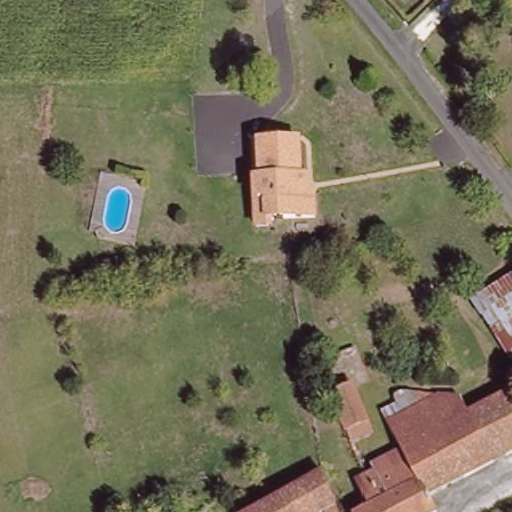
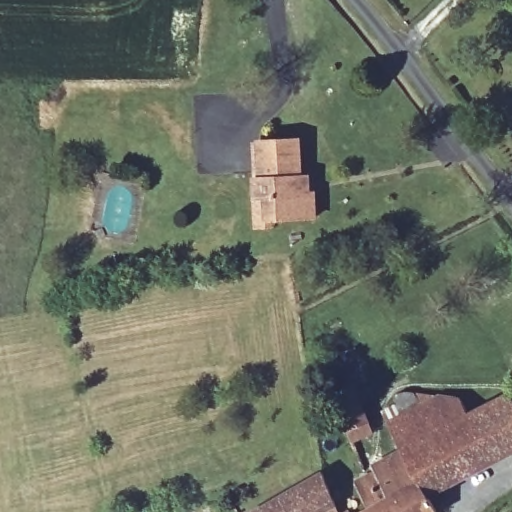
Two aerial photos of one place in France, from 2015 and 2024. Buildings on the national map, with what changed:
unchanged [(254,213),(255,184),(261,184),(261,151),(302,150),(303,179),(308,180),(309,203),(316,203),(316,225),(292,226),(256,228),(254,213)]
demolished [(489,332),(468,302),(512,279),(512,344),(501,325),(489,332)]
unchanged [(347,431),(335,392),(355,386),(367,424),(347,431)]
unchanged [(425,399),(453,398),(463,418),(501,396),(512,414),(512,457),(427,506),(430,512),(365,512),(391,499),(372,468),(399,452),(383,423),(397,415),(400,421),(411,415),(409,410),(425,399)]
unchanged [(338,512),(260,512),(323,477),(338,512)]
unchanged [(349,512),(339,512),(348,509),(349,512)]

